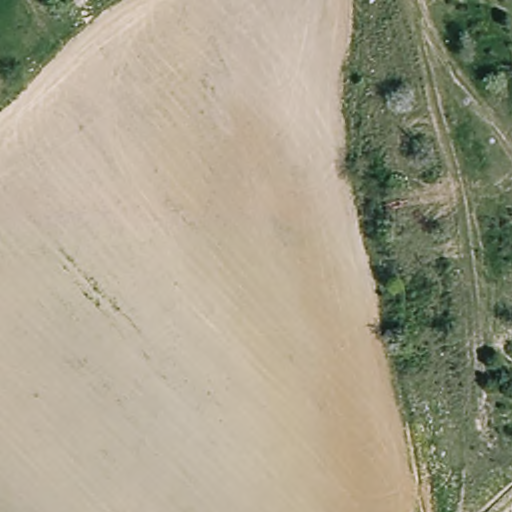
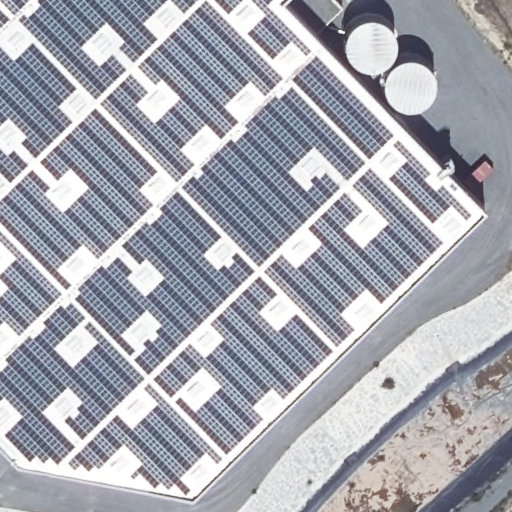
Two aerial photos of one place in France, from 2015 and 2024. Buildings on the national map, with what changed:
new [(333,0),(340,7),(314,33),(484,205),(191,490),(15,457),(0,441),(0,0),(333,0)]

